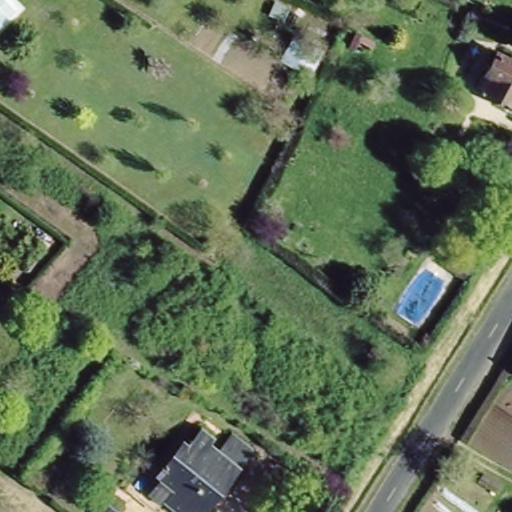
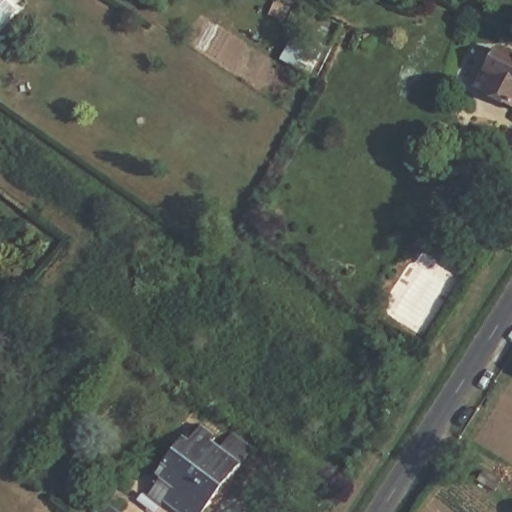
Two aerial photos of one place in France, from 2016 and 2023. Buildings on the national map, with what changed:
unchanged [(497,51),(512,59),(512,107),(477,88),(497,51)]
unchanged [(230,480),(226,486),(217,493),(214,493),(201,512),(184,512),(167,501),(164,507),(158,501),(155,493),(154,487),(155,480),(150,477),(169,448),(175,452),(195,422),(212,432),(206,441),(214,445),(225,429),(247,444),(236,461),(229,471),(230,475),(230,480)]
unchanged [(72,511),(89,490),(102,500),(117,512),(74,512),(72,511)]

